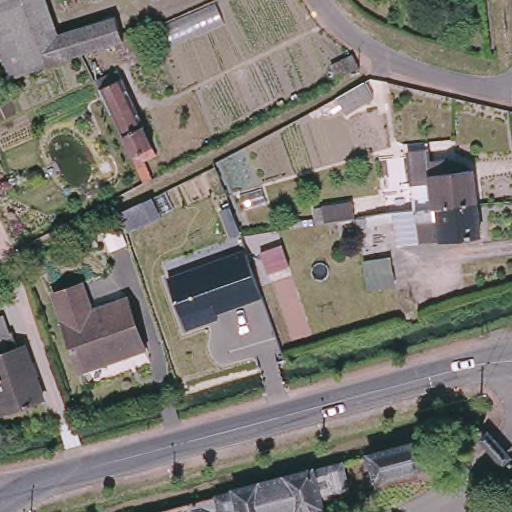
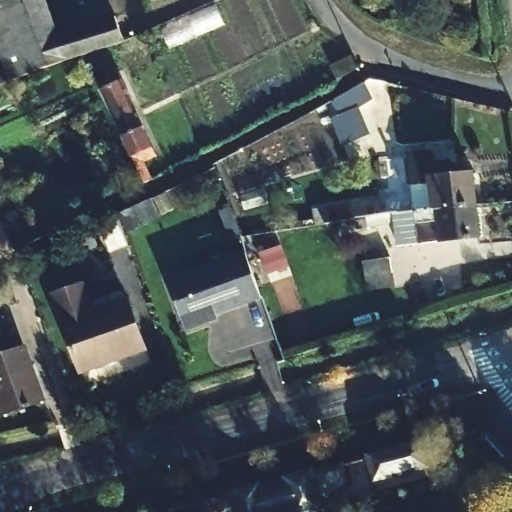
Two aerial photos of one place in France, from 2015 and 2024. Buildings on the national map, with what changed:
unchanged [(57,38),(115,22),(122,47),(112,50),(84,59),(42,73),(10,84),(0,56),(0,0),(43,0),(57,38)]
unchanged [(155,5),(148,2),(148,0),(169,0),(155,5)]
unchanged [(358,68),(336,80),(330,68),(352,55),(358,68)]
unchanged [(148,169),(152,178),(145,182),(125,140),(113,113),(110,114),(96,82),(119,72),(133,103),(146,130),(161,163),(148,169)]
unchanged [(366,82),(375,98),(348,112),(340,96),(366,82)]
unchanged [(411,189),(408,158),(427,155),(429,167),(449,164),(451,177),(472,175),(476,208),(466,208),(433,213),(430,186),(411,189)]
unchanged [(398,251),(395,228),(368,232),(367,227),(357,228),(356,224),(354,205),(391,199),(394,218),(433,213),(466,208),(476,208),(480,240),(398,251)]
unchanged [(244,252),(259,300),(215,316),(216,322),(183,332),(166,283),(244,252)]
unchanged [(391,258),(393,271),(366,275),(363,262),(391,258)]
unchanged [(82,285),(91,310),(128,298),(145,349),(80,372),(49,297),(82,285)]
unchanged [(13,343),(20,341),(40,395),(0,408),(0,329),(6,327),(13,343)]
unchanged [(346,485),(348,490),(339,492),(340,495),(319,500),(320,507),(299,512),(241,512),(240,511),(235,512),(222,512),(220,506),(206,510),(207,512),(155,512),(418,444),(424,464),(346,485)]

